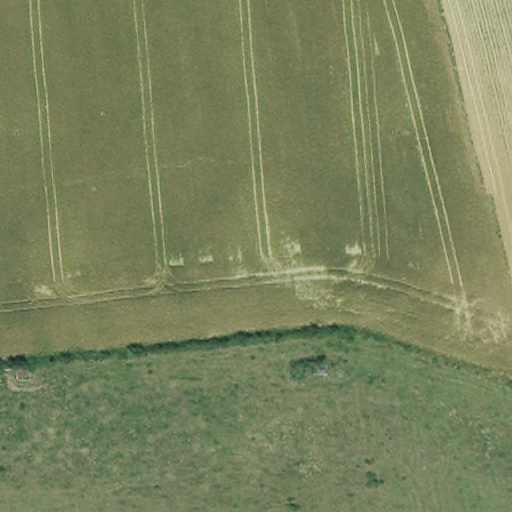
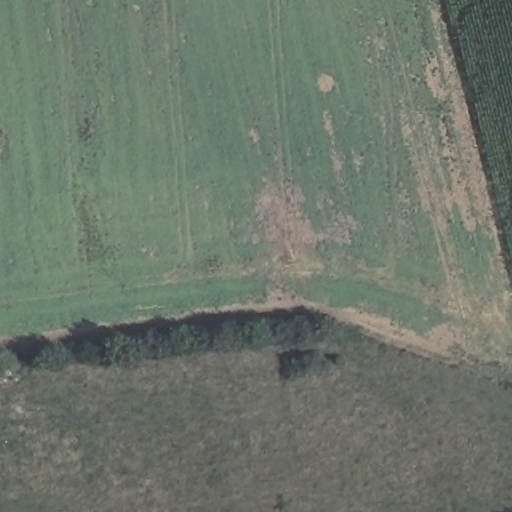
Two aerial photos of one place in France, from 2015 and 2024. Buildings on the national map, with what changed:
[]

